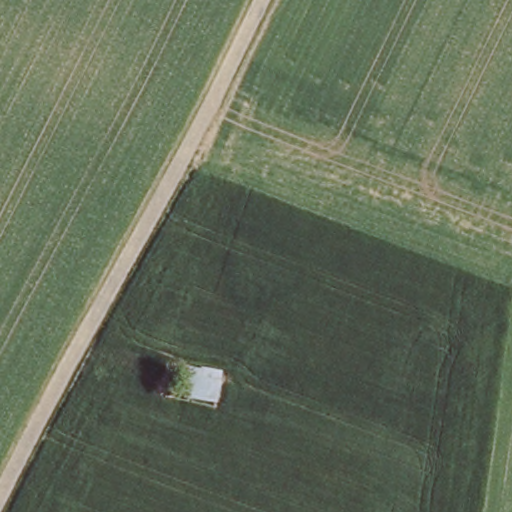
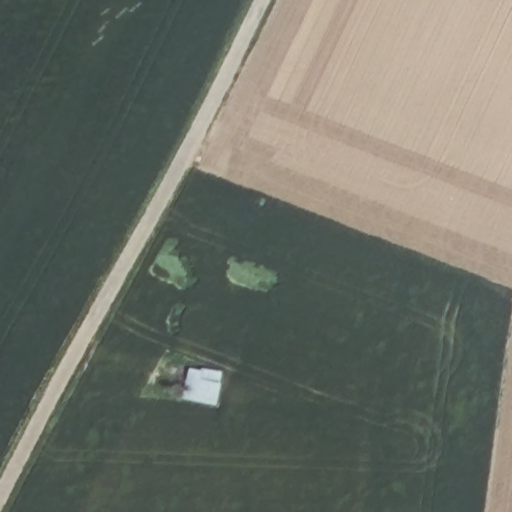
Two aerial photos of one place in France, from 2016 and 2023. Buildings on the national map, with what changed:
unchanged [(185,394),(188,363),(225,373),(218,406),(185,394)]

